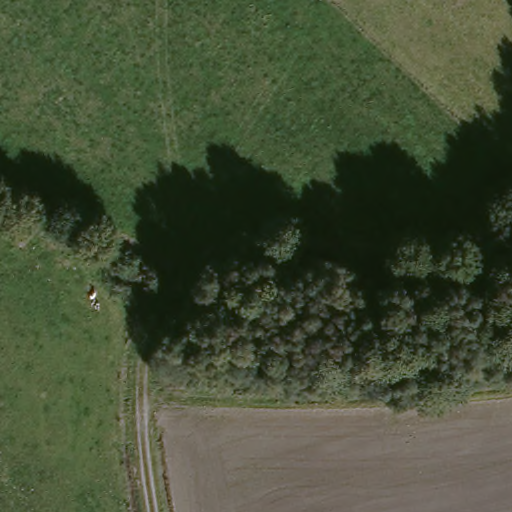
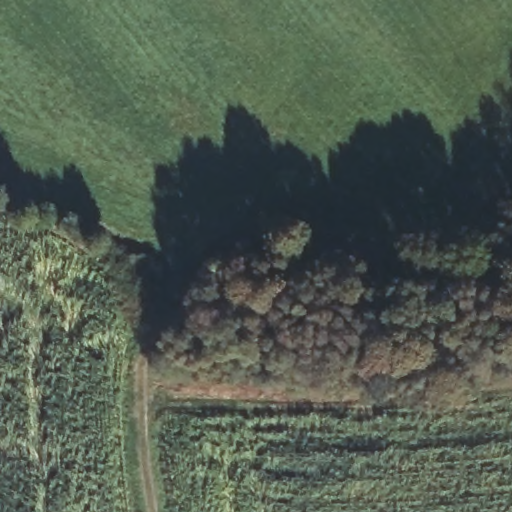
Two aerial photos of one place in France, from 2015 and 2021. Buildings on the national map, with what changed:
[]

